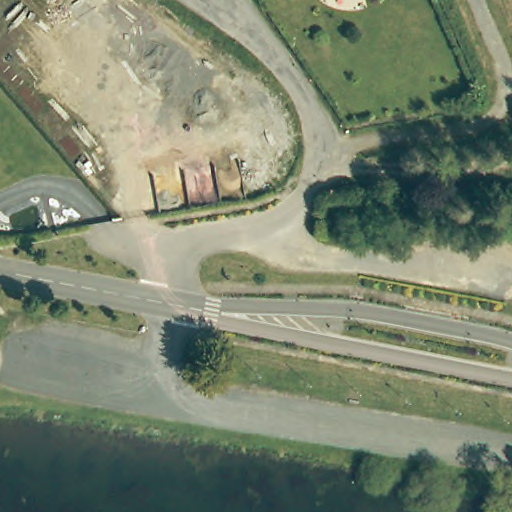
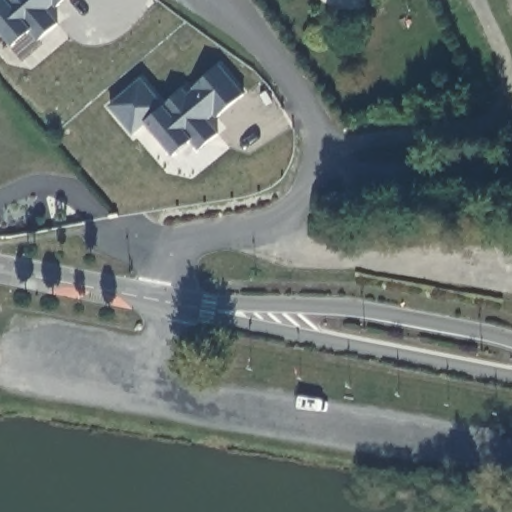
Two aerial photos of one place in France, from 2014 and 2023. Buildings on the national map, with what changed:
new [(56,8),(53,5),(47,11),(60,26),(39,42),(32,33),(14,48),(0,31),(0,0),(66,0),(56,8)]
new [(142,79),(166,107),(185,90),(189,95),(221,68),(244,96),(218,118),(215,114),(208,121),(220,135),(199,152),(192,143),(175,158),(147,125),(133,136),(109,106),(142,79)]

